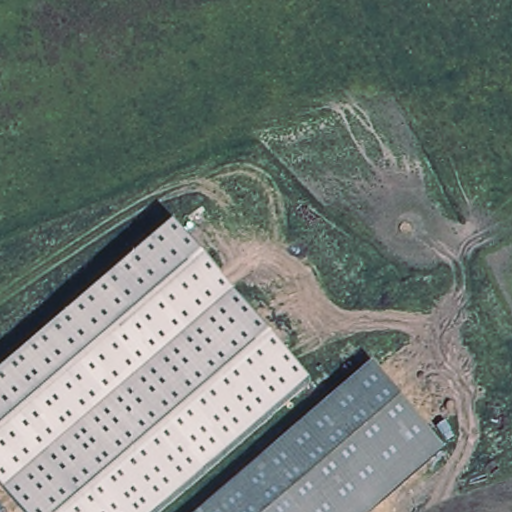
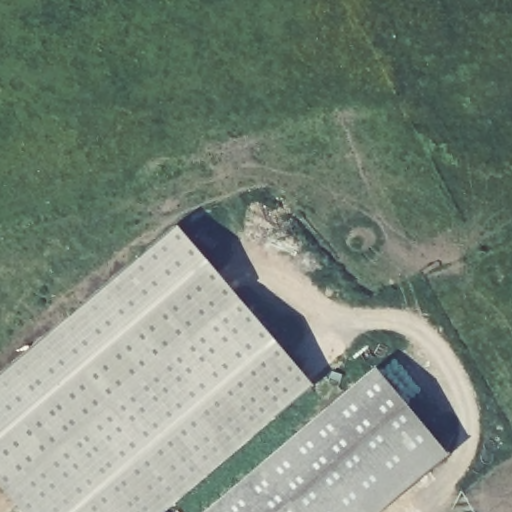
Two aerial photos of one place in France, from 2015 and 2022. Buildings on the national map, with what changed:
unchanged [(310,385),(162,512),(24,512),(0,484),(0,374),(175,225),(310,385)]
unchanged [(381,370),(437,441),(349,512),(301,512),(263,465),(381,370)]
unchanged [(263,465),(301,512),(205,512),(263,465)]

